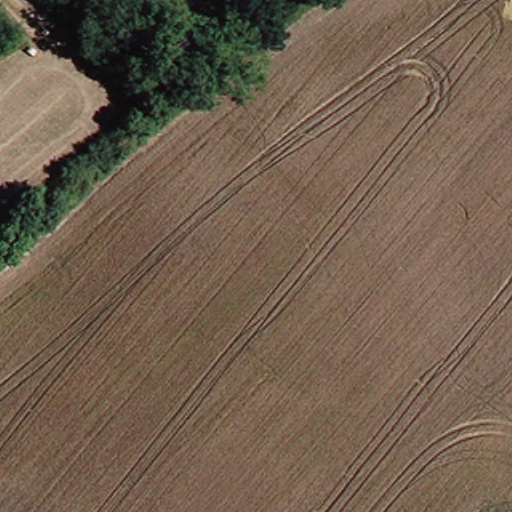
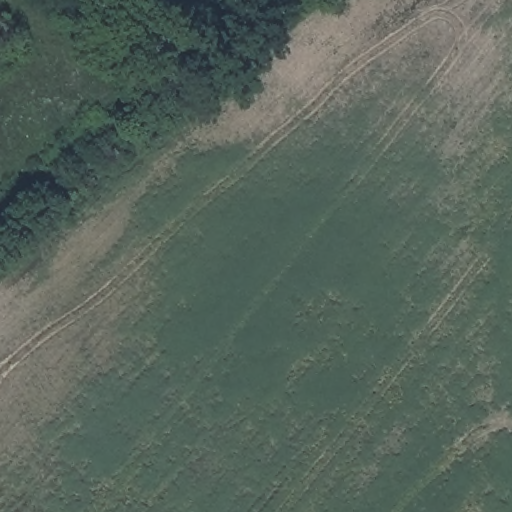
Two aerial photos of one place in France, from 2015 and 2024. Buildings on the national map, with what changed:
[]

